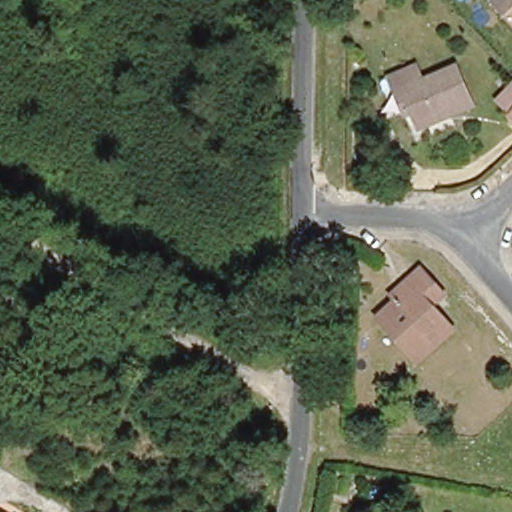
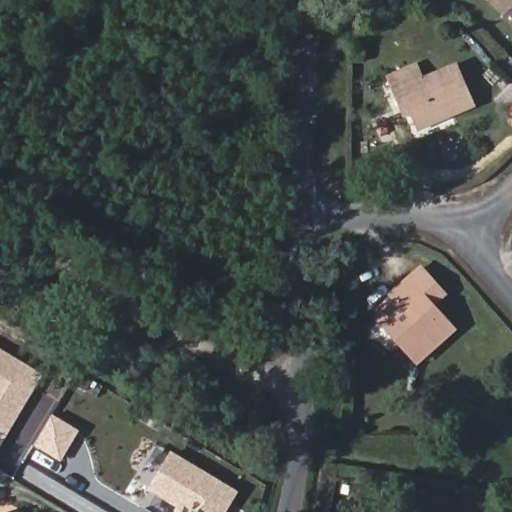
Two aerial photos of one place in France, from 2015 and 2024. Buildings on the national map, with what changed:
unchanged [(512,19),(494,0),(512,0),(512,19)]
unchanged [(396,95),(389,80),(421,68),(428,82),(462,69),(479,107),(423,131),(416,114),(407,117),(396,95)]
unchanged [(512,91),(512,115),(500,102),(512,91)]
unchanged [(382,311),(395,301),(388,293),(409,277),(421,266),(446,296),(431,308),(452,334),(415,365),(399,346),(375,317),(382,311)]
new [(38,375),(0,443),(0,353),(38,375)]
new [(75,431),(59,462),(33,448),(50,416),(75,431)]
new [(228,512),(174,512),(176,508),(147,490),(169,453),(238,493),(228,512)]

